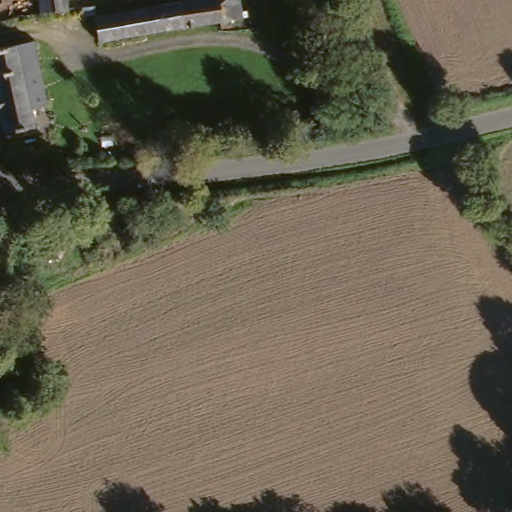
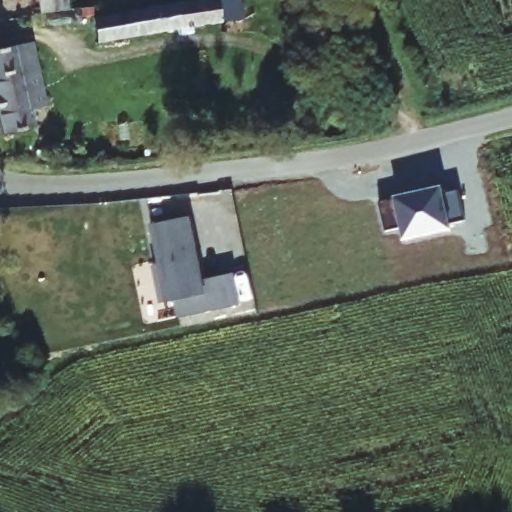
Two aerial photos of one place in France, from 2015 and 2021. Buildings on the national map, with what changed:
unchanged [(73,14),(46,19),(43,0),(71,0),(73,14)]
unchanged [(140,35),(135,9),(190,0),(239,0),(243,19),(140,35)]
unchanged [(351,13),(354,33),(335,35),(333,19),(314,21),(313,0),(350,0),(351,13)]
unchanged [(95,44),(90,16),(135,9),(140,35),(95,44)]
unchanged [(25,39),(36,72),(20,76),(24,89),(0,97),(0,47),(25,39)]
unchanged [(24,89),(20,76),(36,72),(45,95),(32,99),(39,119),(7,129),(0,109),(0,97),(24,89)]
new [(401,196),(403,201),(416,198),(415,193),(440,188),(442,193),(457,190),(465,221),(448,225),(449,230),(403,240),(400,228),(384,232),(378,202),(401,196)]
new [(190,214),(203,279),(233,273),(240,304),(177,316),(173,300),(164,301),(164,300),(159,301),(151,264),(157,263),(148,223),(190,214)]

